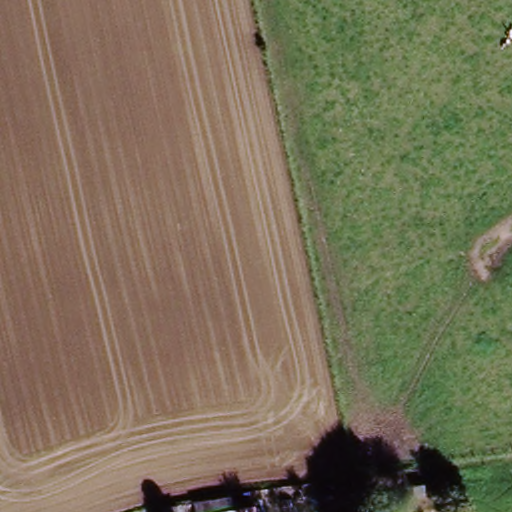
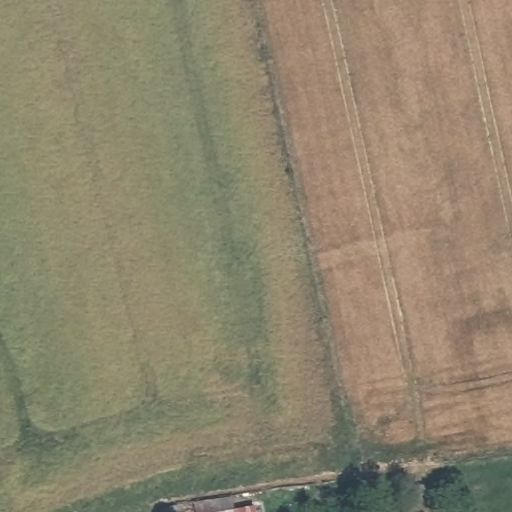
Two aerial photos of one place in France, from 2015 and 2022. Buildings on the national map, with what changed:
unchanged [(231,496),(233,509),(253,506),(254,512),(193,512),(191,502),(231,496)]

